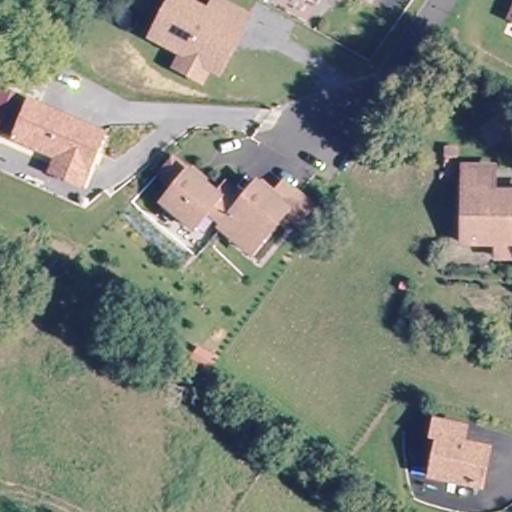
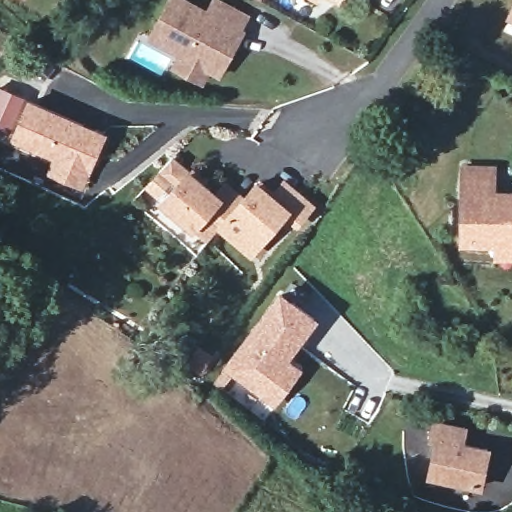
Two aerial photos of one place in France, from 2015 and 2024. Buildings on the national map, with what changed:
unchanged [(183,55),(152,38),(171,0),(186,0),(209,12),(215,0),(220,0),(247,14),(218,73),(211,69),(204,83),(177,68),(183,55)]
unchanged [(320,0),(318,4),(309,0),(320,0)]
unchanged [(512,4),(512,16),(508,14),(512,4)]
unchanged [(14,135),(29,97),(103,127),(88,165),(14,135)]
unchanged [(82,181),(8,151),(14,135),(88,165),(82,181)]
unchanged [(493,234),(461,234),(461,159),(490,160),(490,184),(512,184),(512,250),(492,250),(493,234)]
unchanged [(212,203),(222,192),(239,208),(253,193),(268,207),(281,193),(307,217),(294,231),(284,223),(283,223),(279,220),(254,248),(242,237),(230,250),(215,236),(218,232),(201,217),(187,233),(159,208),(173,192),(156,177),(169,163),(212,203)]
new [(320,317),(291,358),(303,366),(276,407),(234,375),(221,392),(212,385),(282,290),(320,317)]
unchanged [(443,444),(434,442),(438,422),(466,428),(463,444),(491,450),(484,486),(436,475),(443,444)]

